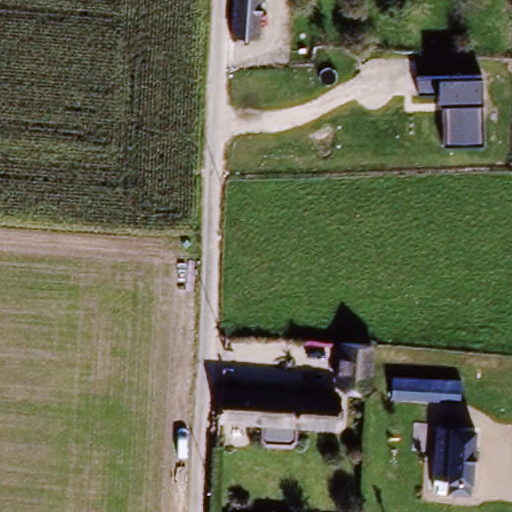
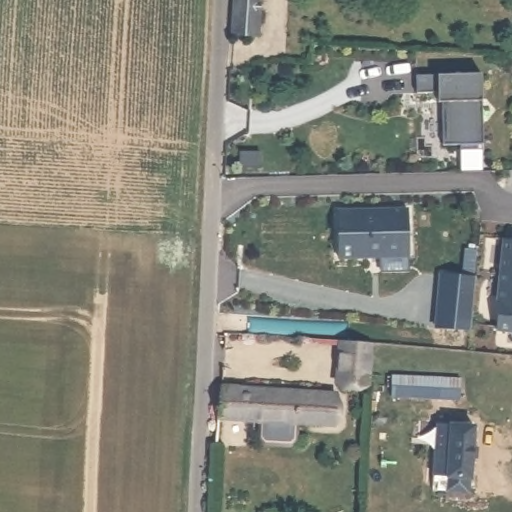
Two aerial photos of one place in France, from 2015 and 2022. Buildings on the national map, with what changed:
unchanged [(264,0),(261,34),(231,34),(233,0),(264,0)]
unchanged [(483,72),(485,146),(443,145),(442,94),(418,94),(417,74),(483,72)]
new [(402,210),(404,256),(333,258),(332,212),(402,210)]
new [(512,242),(512,332),(495,331),(503,242),(512,242)]
new [(436,274),(472,277),(467,329),(431,326),(436,274)]
unchanged [(372,351),(371,390),(338,388),(340,348),(372,351)]
unchanged [(461,377),(460,399),(394,399),(394,377),(461,377)]
unchanged [(296,425),(296,442),(292,445),(267,445),(263,440),(265,422),(218,420),(219,391),(338,396),(336,427),(296,425)]
unchanged [(467,494),(433,492),(436,456),(425,455),(427,431),(438,432),(439,421),(464,423),(463,434),(472,435),(467,494)]

